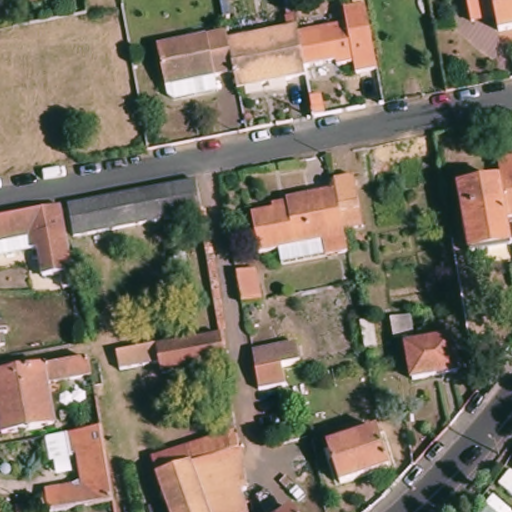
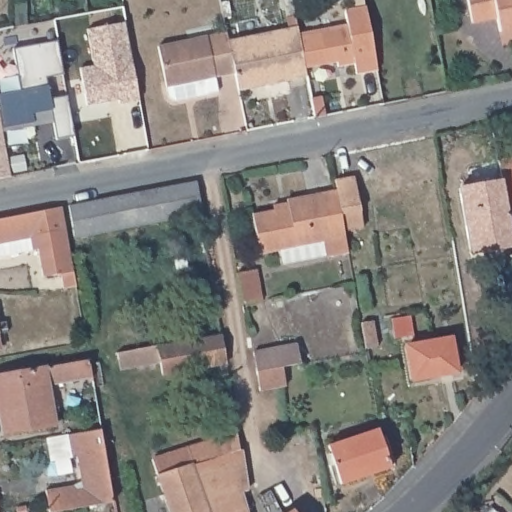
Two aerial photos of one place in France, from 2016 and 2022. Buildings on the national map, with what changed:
unchanged [(492,11),(466,16),(463,0),(512,0),(512,22),(495,26),(492,11)]
unchanged [(342,25),(339,10),(360,6),(373,69),(351,74),(349,65),(332,68),(331,62),(301,69),(294,35),(342,25)]
new [(81,67),(92,66),(86,31),(125,24),(139,100),(119,105),(118,100),(86,106),(81,67)]
unchanged [(293,27),(294,35),(301,69),(302,76),(232,89),(229,72),(223,41),(293,27)]
unchanged [(209,77),(212,91),(168,100),(162,97),(151,47),(222,32),(223,41),(229,72),(209,77)]
new [(56,141),(54,125),(2,134),(0,120),(0,96),(19,92),(13,50),(56,41),(74,137),(56,141)]
new [(0,177),(0,120),(2,134),(10,175),(0,177)]
unchanged [(512,156),(512,214),(503,216),(497,180),(493,160),(512,156)]
unchanged [(331,180),(350,175),(359,227),(340,230),(333,190),(331,180)]
unchanged [(461,187),(460,182),(471,180),(472,185),(497,180),(503,216),(508,245),(466,253),(454,189),(461,187)]
unchanged [(193,182),(197,212),(70,237),(65,205),(193,182)]
unchanged [(278,264),(274,250),(256,254),(249,214),(270,211),(269,206),(284,203),(283,199),(333,190),(340,230),(341,234),(344,252),(335,254),(324,256),(278,264)]
unchanged [(58,206),(73,286),(60,288),(58,275),(40,277),(35,250),(29,251),(0,256),(0,217),(58,206)]
unchanged [(253,266),(257,295),(239,298),(234,268),(253,266)]
unchanged [(357,321),(357,317),(370,315),(375,342),(361,346),(359,328),(357,321)]
unchanged [(6,319),(7,330),(0,331),(0,320),(6,319)]
unchanged [(411,319),(414,340),(394,342),(391,322),(411,319)]
unchanged [(226,334),(231,361),(231,365),(168,376),(166,363),(125,370),(122,353),(226,334)]
unchanged [(255,386),(252,366),(249,347),(293,340),(296,358),(280,361),(283,382),(255,386)]
unchanged [(453,342),(454,346),(459,346),(463,372),(459,373),(459,375),(415,382),(410,347),(453,342)]
unchanged [(59,421),(5,430),(3,413),(0,414),(0,368),(22,364),(24,363),(92,352),(95,371),(52,377),(59,421)]
unchanged [(218,447),(214,415),(227,412),(234,455),(235,461),(190,474),(190,476),(203,512),(163,512),(147,470),(218,447)]
unchanged [(75,486),(79,492),(88,491),(81,453),(75,454),(75,457),(54,461),(50,438),(71,435),(104,428),(116,502),(51,512),(48,490),(75,486)]
unchanged [(378,430),(384,448),(387,447),(392,467),(333,487),(326,467),(331,466),(325,447),(378,430)]
unchanged [(190,476),(190,474),(235,461),(236,460),(244,500),(236,502),(240,512),(203,512),(190,476)]

